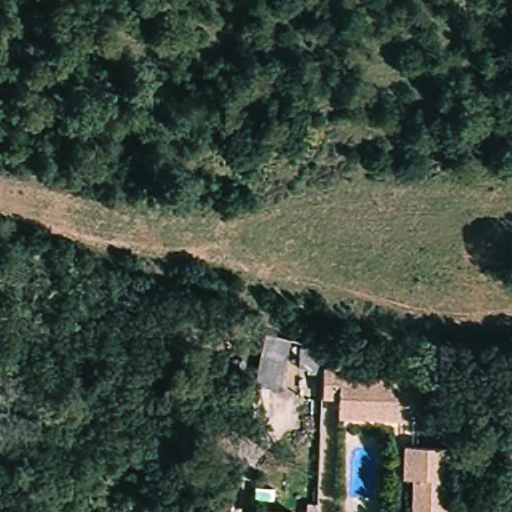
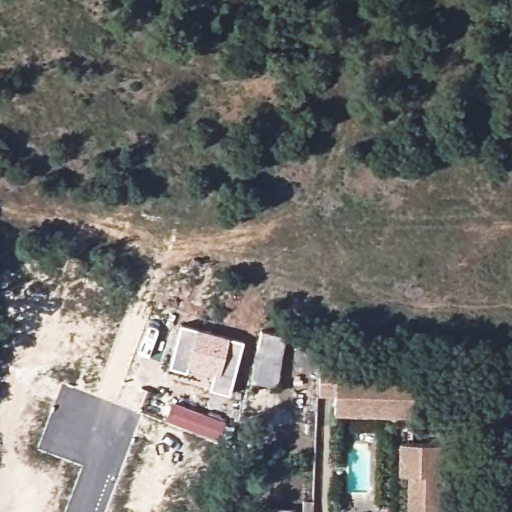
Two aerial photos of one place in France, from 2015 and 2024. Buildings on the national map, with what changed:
new [(229,394),(208,388),(211,374),(187,367),(186,372),(168,367),(180,323),(244,340),(229,394)]
unchanged [(261,334),(283,337),(274,389),(256,387),(261,334)]
unchanged [(305,336),(326,341),(326,362),(324,396),(324,402),(299,399),(305,336)]
unchanged [(326,362),(352,364),(351,378),(373,381),(374,376),(420,381),(418,421),(337,416),(339,397),(324,396),(326,362)]
unchanged [(449,449),(444,512),(412,512),(414,482),(405,481),(407,447),(449,449)]
unchanged [(265,506),(296,508),(296,512),(265,512),(265,506)]

